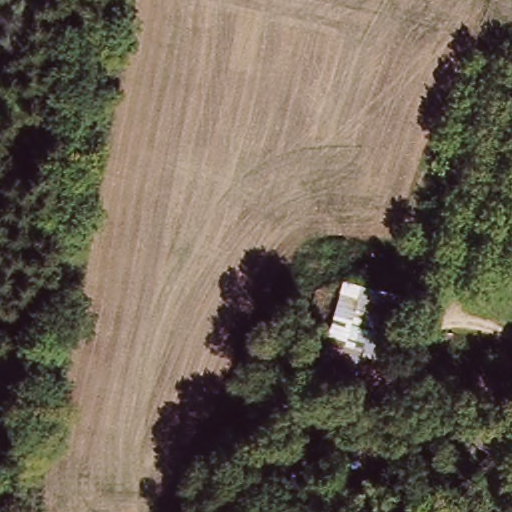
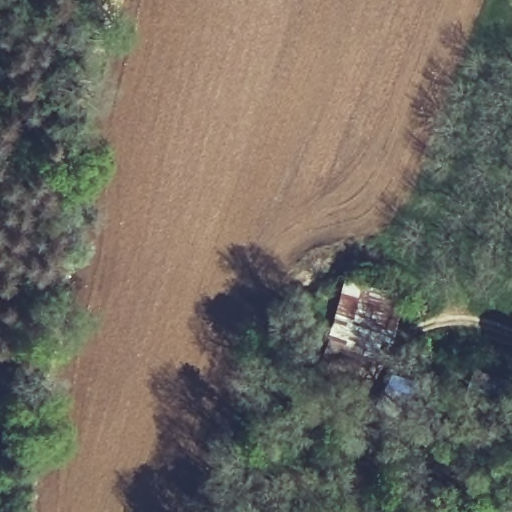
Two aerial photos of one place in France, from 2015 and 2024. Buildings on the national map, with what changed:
unchanged [(396,292),(380,361),(366,357),(362,365),(326,356),(346,279),(396,292)]
unchanged [(481,368),(512,375),(512,395),(478,387),(481,368)]

